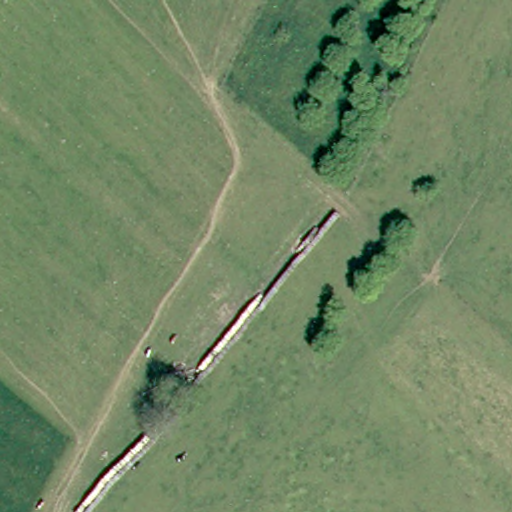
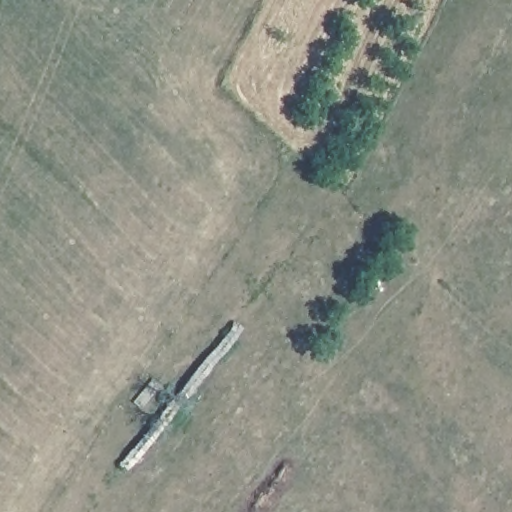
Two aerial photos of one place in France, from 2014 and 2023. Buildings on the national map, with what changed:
[]

